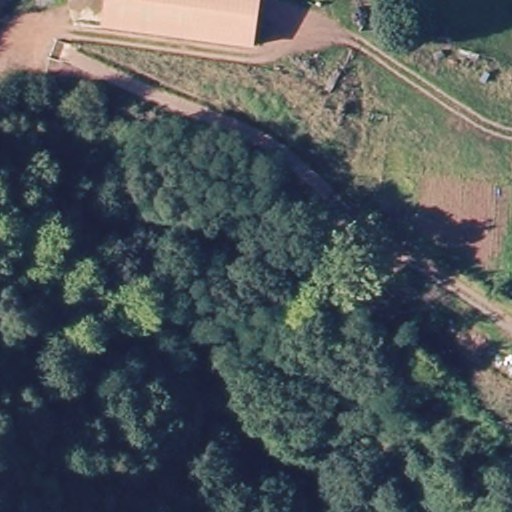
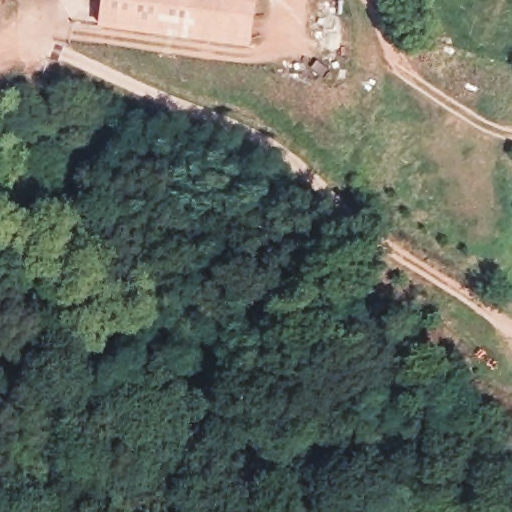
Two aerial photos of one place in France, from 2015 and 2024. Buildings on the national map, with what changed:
unchanged [(105,0),(257,0),(250,48),(101,29),(105,0)]

